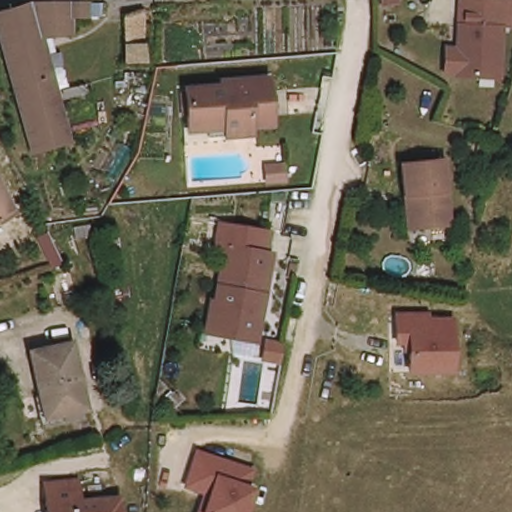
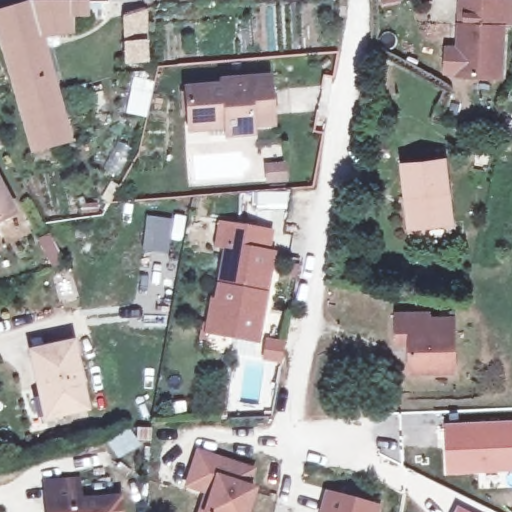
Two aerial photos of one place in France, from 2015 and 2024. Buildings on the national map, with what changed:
unchanged [(465,27),(465,11),(466,0),(504,0),(503,12),(503,28),(506,28),(505,78),(462,77),(462,61),(462,44),(462,27),(465,27)]
unchanged [(30,115),(20,91),(0,44),(0,13),(32,2),(87,1),(87,20),(71,22),(71,35),(43,42),(56,80),(65,103),(78,141),(45,152),(30,115)]
unchanged [(129,70),(128,50),(126,20),(145,15),(146,49),(146,67),(129,70)]
unchanged [(188,130),(184,98),(219,94),(219,88),(266,82),(271,129),(251,132),(252,139),(225,142),(224,135),(190,139),(188,130)]
unchanged [(449,196),(452,215),(444,216),(413,221),(409,188),(404,189),(400,159),(443,154),(449,196)]
unchanged [(285,164),(287,179),(272,180),(270,165),(285,164)]
unchanged [(0,222),(0,185),(16,211),(0,222)]
unchanged [(204,317),(207,295),(212,295),(220,238),(267,245),(261,286),(259,302),(255,331),(234,330),(203,325),(204,317)]
unchanged [(431,315),(431,319),(458,320),(453,375),(408,373),(410,347),(395,346),(395,313),(431,315)]
unchanged [(91,405),(48,419),(26,351),(68,338),(91,405)]
new [(448,474),(446,422),(512,420),(512,471),(448,474)]
unchanged [(253,484),(259,486),(251,512),(199,512),(205,495),(185,488),(198,447),(258,467),(253,484)]
unchanged [(80,500),(117,499),(119,512),(28,512),(28,508),(51,507),(49,485),(80,485),(80,500)]
new [(380,505),(379,512),(319,512),(325,490),(380,505)]
new [(471,512),(453,512),(456,505),(471,512)]

